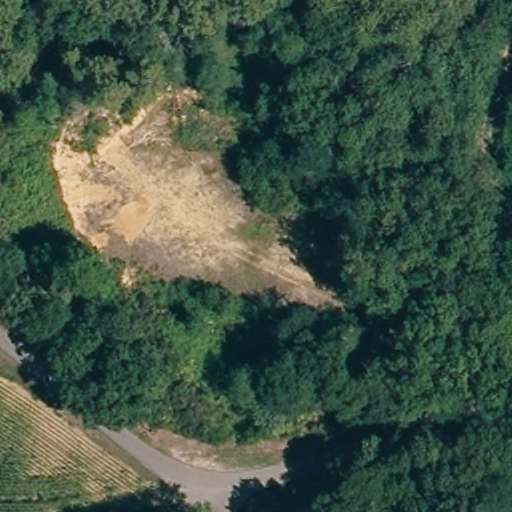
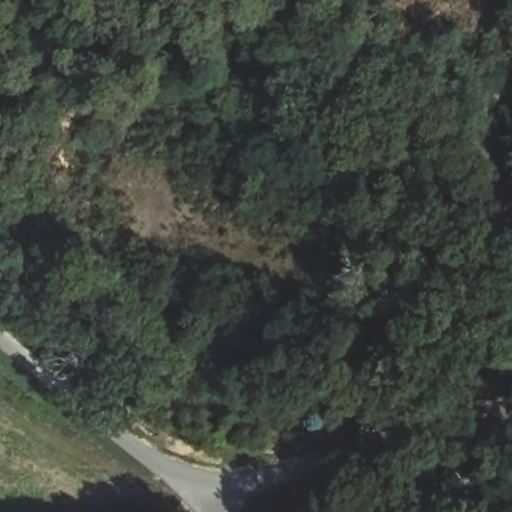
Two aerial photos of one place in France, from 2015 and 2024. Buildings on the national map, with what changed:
[]

